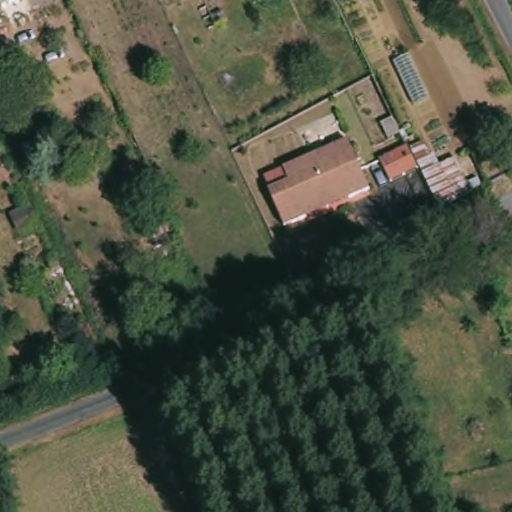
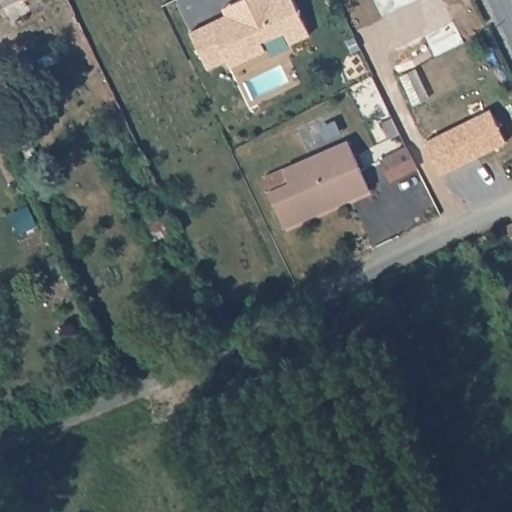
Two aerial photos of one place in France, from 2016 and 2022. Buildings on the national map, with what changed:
unchanged [(0,2),(0,0),(16,0),(2,7),(0,2)]
new [(191,32),(226,16),(223,9),(241,0),(293,0),(310,35),(292,44),(285,31),(262,41),(265,49),(231,67),(228,59),(208,69),(191,32)]
unchanged [(281,228),(266,192),(260,178),(281,169),(347,141),(367,190),(347,199),(303,218),(281,228)]
unchanged [(480,187),(469,192),(471,195),(438,211),(420,173),(409,148),(422,142),(433,167),(453,157),(465,183),(476,178),(480,187)]
unchanged [(389,181),(378,160),(405,146),(416,168),(389,181)]

